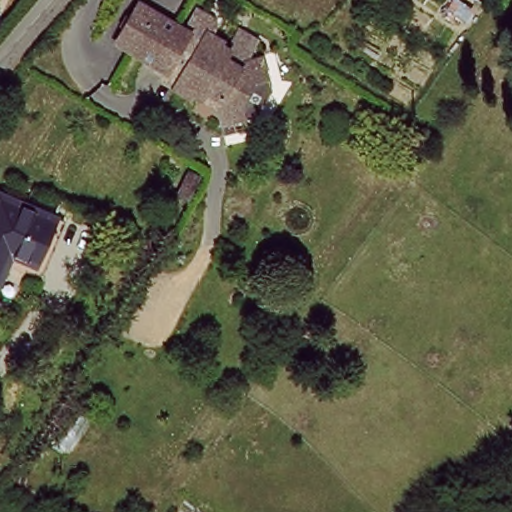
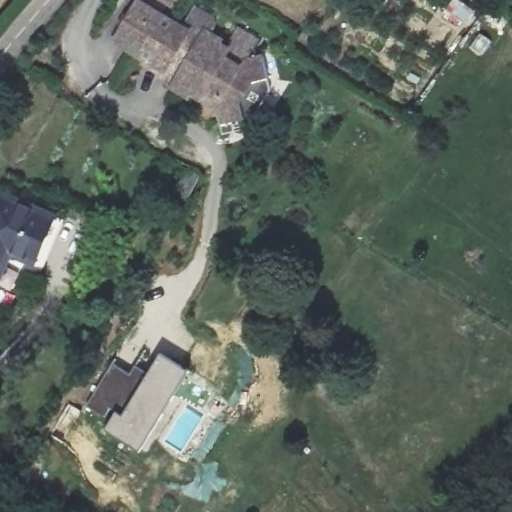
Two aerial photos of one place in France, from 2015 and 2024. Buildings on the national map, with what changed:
unchanged [(139,2),(187,31),(163,70),(116,39),(139,2)]
unchanged [(218,126),(215,109),(200,99),(191,93),(188,96),(171,86),(205,32),(220,44),(217,46),(229,54),(245,64),(263,60),(265,84),(250,87),(238,105),(241,119),(218,126)]
unchanged [(55,212),(35,260),(13,252),(0,282),(0,191),(16,197),(55,212)]
new [(131,375),(138,366),(152,373),(163,355),(189,371),(142,450),(107,429),(118,412),(110,407),(105,416),(88,406),(114,365),(131,375)]

